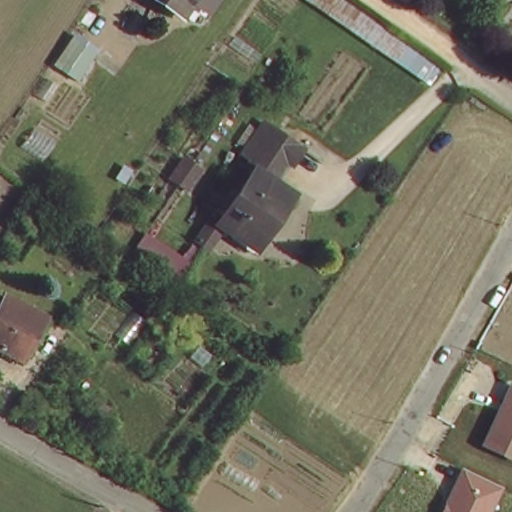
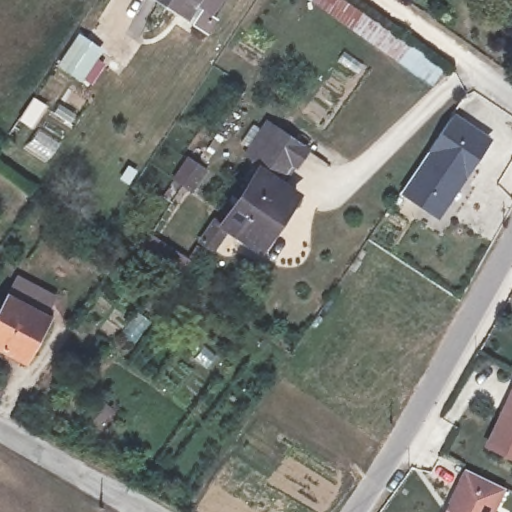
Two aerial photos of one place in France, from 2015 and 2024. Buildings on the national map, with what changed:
unchanged [(156,0),(203,0),(190,21),(156,0)]
unchanged [(419,72),(318,0),(359,0),(432,52),(419,72)]
unchanged [(83,86),(58,69),(78,32),(105,54),(83,86)]
unchanged [(256,160),(250,151),(271,120),(294,137),(273,171),(256,160)]
new [(460,125),(496,150),(444,224),(408,200),(460,125)]
unchanged [(273,171),(293,184),(258,240),(226,218),(210,241),(196,232),(210,210),(218,216),(256,160),(273,171)]
unchanged [(35,343),(31,342),(19,363),(0,351),(0,319),(10,302),(46,323),(35,343)]
unchanged [(485,445),(512,390),(512,458),(485,445)]
unchanged [(111,417),(97,436),(80,423),(95,406),(111,417)]
unchanged [(506,487),(493,512),(443,512),(465,468),(506,487)]

